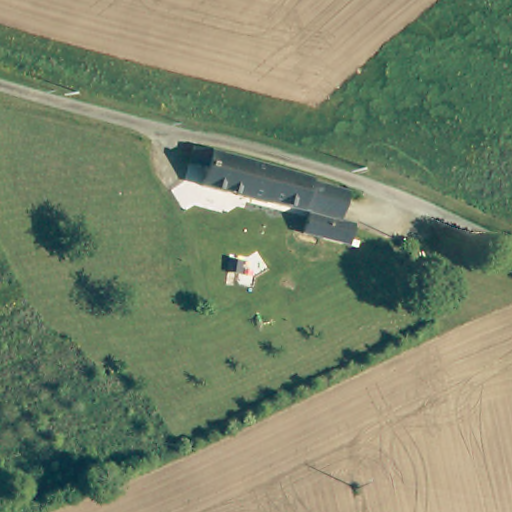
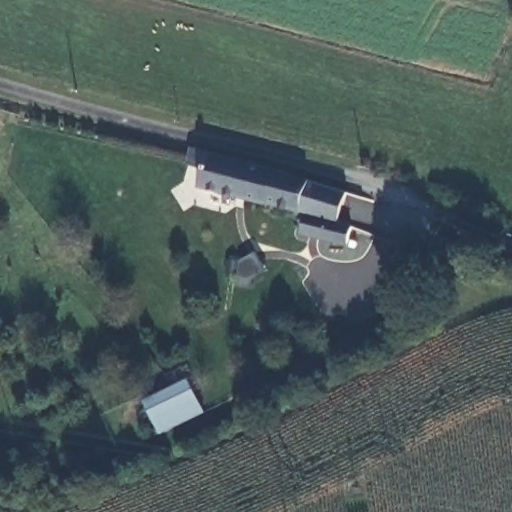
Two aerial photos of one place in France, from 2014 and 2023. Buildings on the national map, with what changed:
unchanged [(300,209),(264,199),(264,202),(198,181),(204,164),(187,157),(192,145),(308,179),(300,209)]
unchanged [(336,220),(349,225),(344,244),(301,230),(306,211),(300,209),(308,179),(344,192),(336,220)]
unchanged [(231,255),(244,261),(239,272),(226,267),(231,255)]
new [(191,378),(200,398),(207,413),(161,435),(154,421),(145,400),(191,378)]

